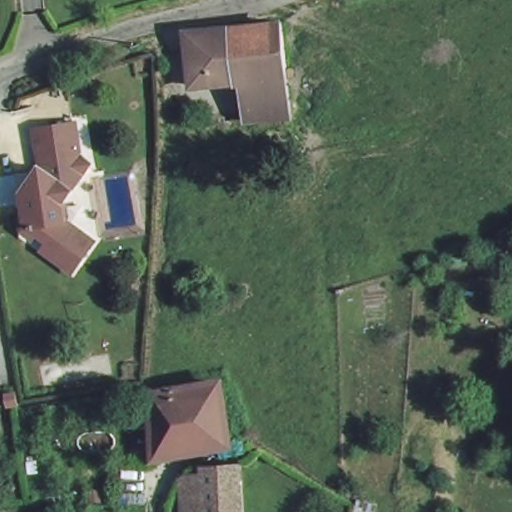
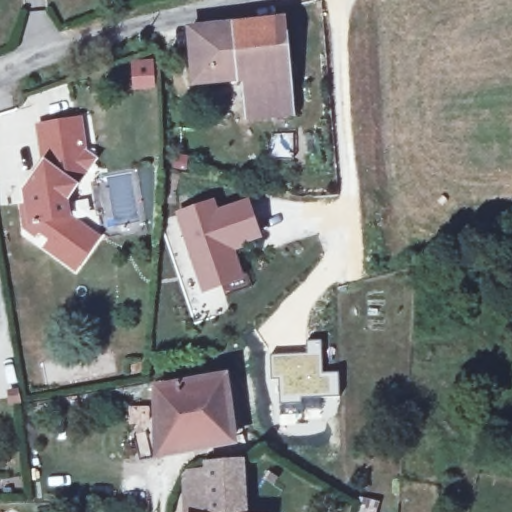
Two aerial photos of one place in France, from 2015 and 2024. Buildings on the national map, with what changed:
unchanged [(191,85),(189,30),(281,21),(284,69),(291,68),(291,77),(286,77),(245,81),(191,85)]
unchanged [(286,77),(290,117),(246,120),(245,81),(286,77)]
unchanged [(93,156),(87,165),(67,195),(67,209),(71,215),(97,233),(75,263),(48,244),(54,236),(42,225),(34,230),(20,220),(17,202),(23,201),(20,185),(40,157),(38,139),(35,122),(71,115),(74,131),(77,146),(93,156)]
new [(204,288),(182,214),(215,203),(218,214),(250,203),(261,236),(230,247),(231,251),(234,250),(243,275),(204,288)]
new [(270,353),(307,353),(307,341),(321,341),(323,374),(338,372),(339,397),(301,399),(301,404),(279,406),(276,381),(270,381),(270,353)]
unchanged [(227,444),(208,447),(158,456),(158,397),(158,393),(216,381),(222,380),(227,397),(236,437),(245,438),(245,443),(245,450),(245,455),(229,458),(228,453),(227,444)]
unchanged [(242,465),(242,512),(211,512),(210,466),(242,465)]

